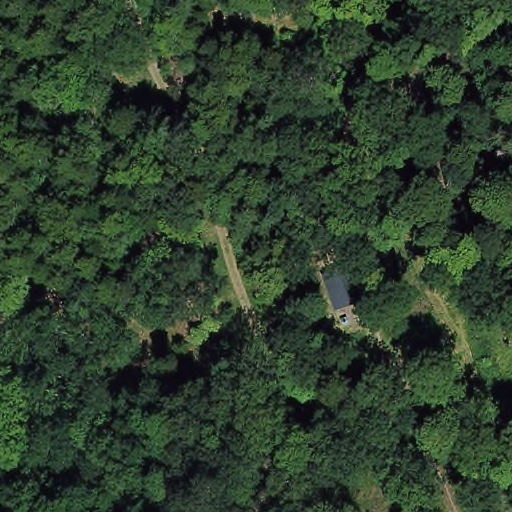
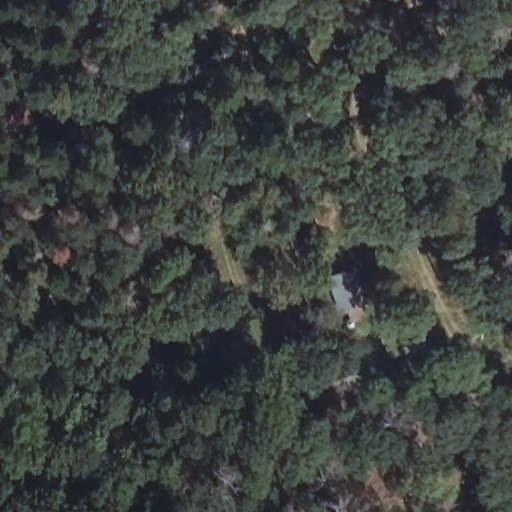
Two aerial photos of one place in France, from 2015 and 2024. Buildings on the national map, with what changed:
unchanged [(345,265),(359,305),(334,313),(320,273),(345,265)]

